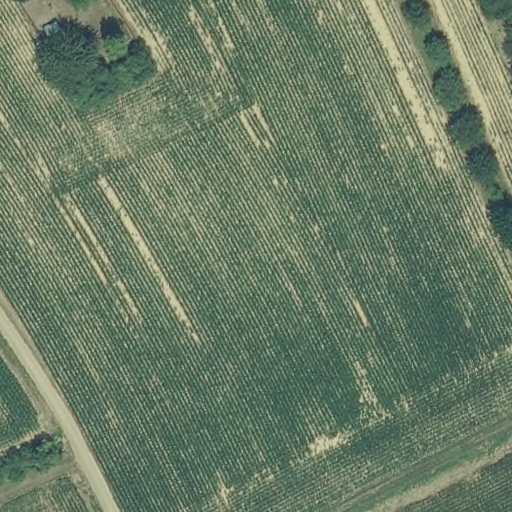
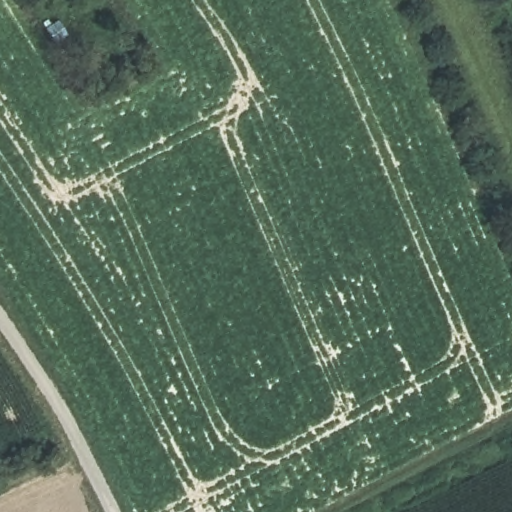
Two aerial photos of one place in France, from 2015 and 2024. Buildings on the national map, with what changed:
unchanged [(58,19),(68,38),(56,45),(48,26),(58,19)]

